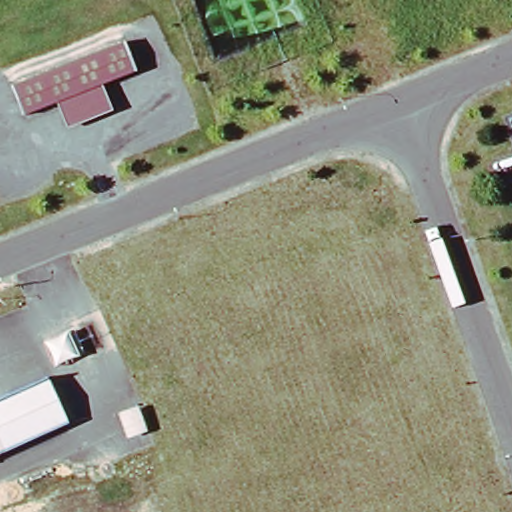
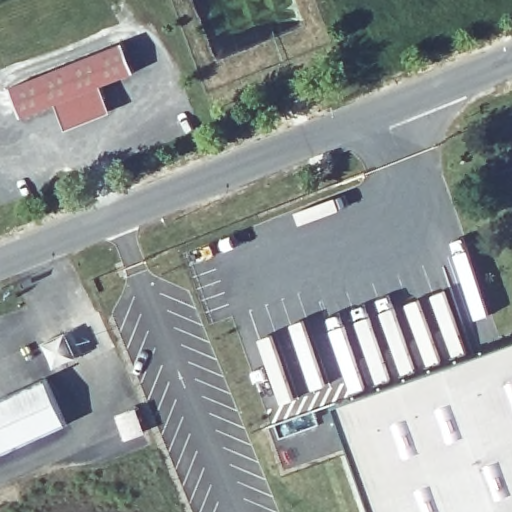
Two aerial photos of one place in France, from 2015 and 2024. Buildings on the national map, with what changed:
unchanged [(140,68),(105,80),(111,94),(105,111),(84,119),(69,110),(64,98),(29,112),(17,83),(128,39),(140,68)]
new [(66,332),(78,358),(55,368),(43,343),(66,332)]
new [(512,340),(512,512),(378,512),(338,403),(512,340)]
unchanged [(67,428),(0,457),(0,402),(47,382),(67,428)]

